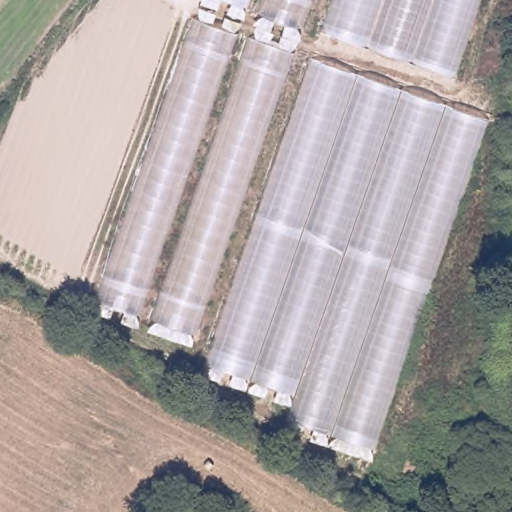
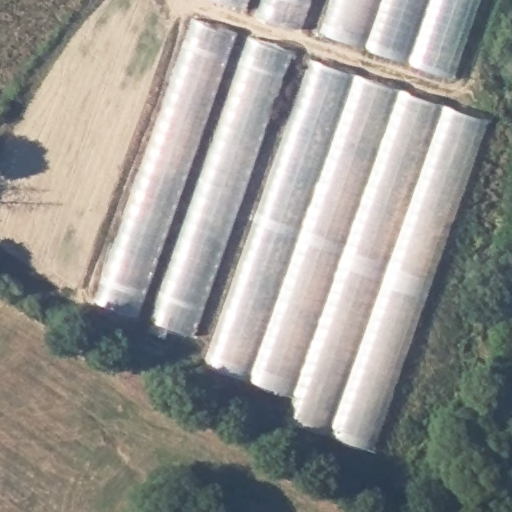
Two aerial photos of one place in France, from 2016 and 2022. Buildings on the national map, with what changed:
unchanged [(446,105),(486,120),(371,458),(292,427),(297,400),(210,366),(212,346),(105,300),(204,0),(481,0),(446,105)]

